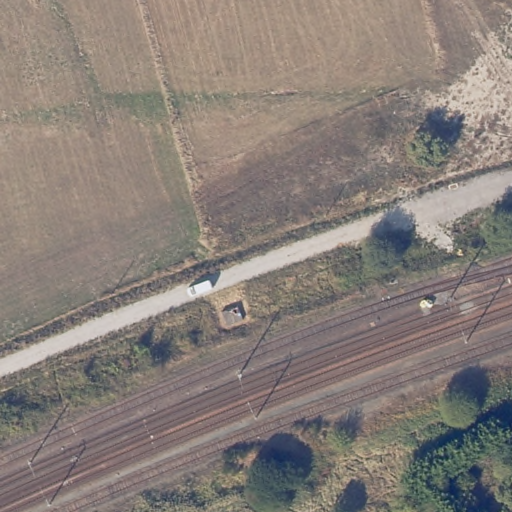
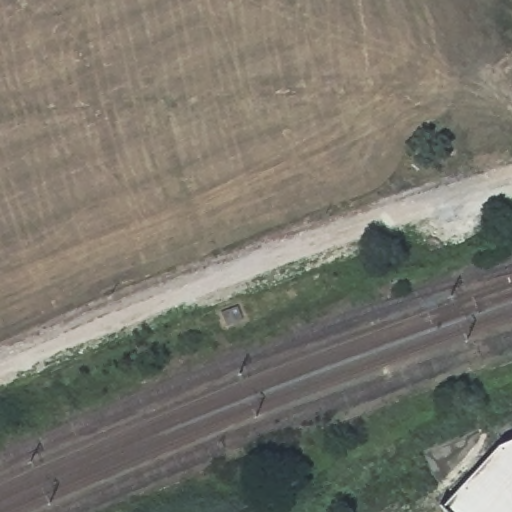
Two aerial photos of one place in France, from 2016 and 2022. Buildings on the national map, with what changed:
new [(512,438),(512,512),(447,512),(442,506),(496,444),(512,438)]

